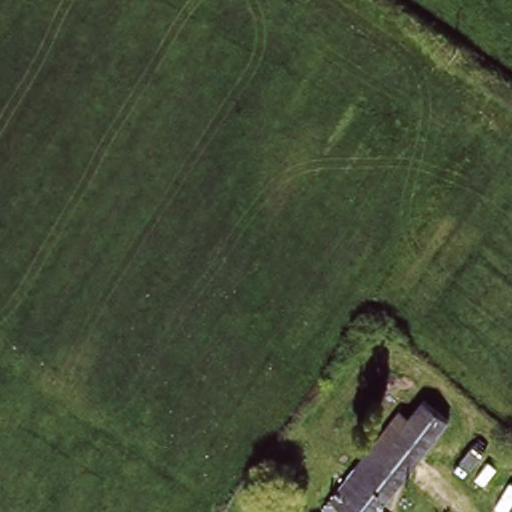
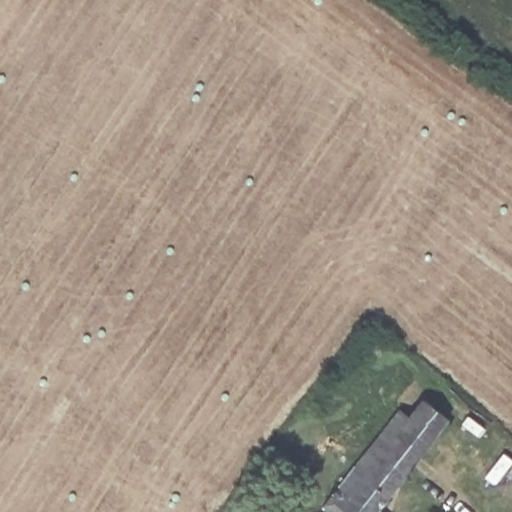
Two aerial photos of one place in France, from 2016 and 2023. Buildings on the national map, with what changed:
unchanged [(402,512),(344,512),(424,411),(460,438),(402,512)]

